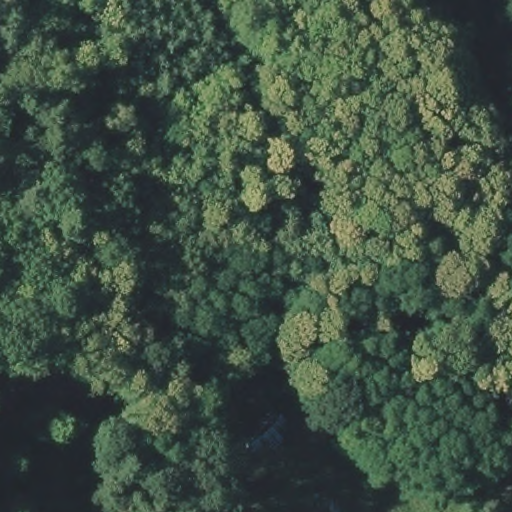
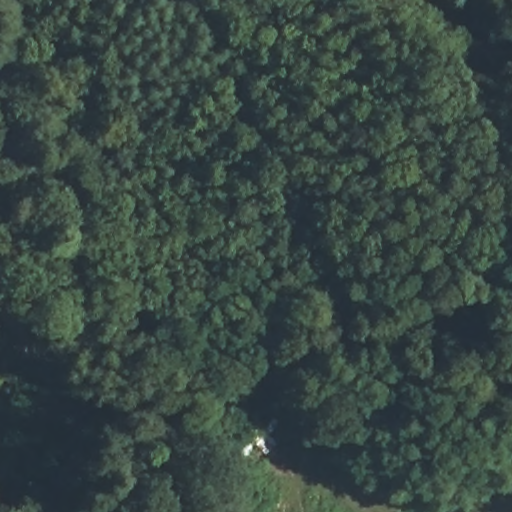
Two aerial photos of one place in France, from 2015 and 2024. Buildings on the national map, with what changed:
unchanged [(266,456),(251,439),(272,411),(292,435),(266,456)]

